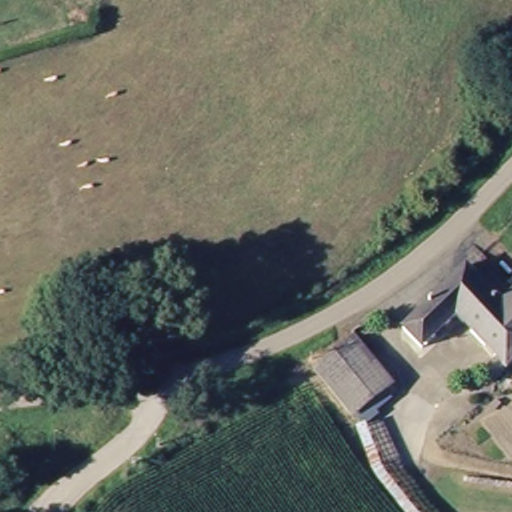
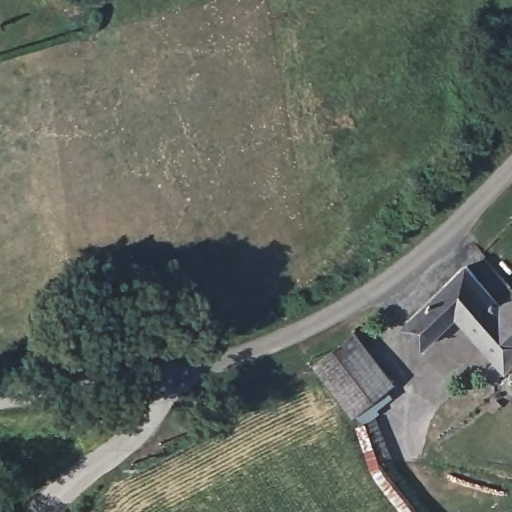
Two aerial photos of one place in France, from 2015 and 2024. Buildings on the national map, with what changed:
unchanged [(430,279),(448,287),(487,250),(512,269),(512,362),(507,369),(485,363),(499,341),(462,312),(430,351),(405,331),(422,313),(411,302),(430,279)]
unchanged [(354,336),(401,384),(362,420),(317,367),(354,336)]

